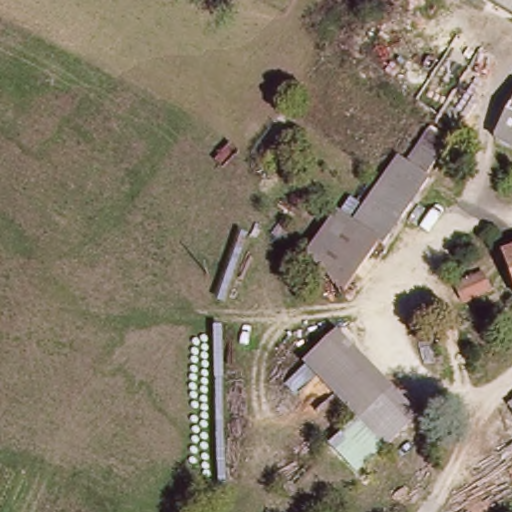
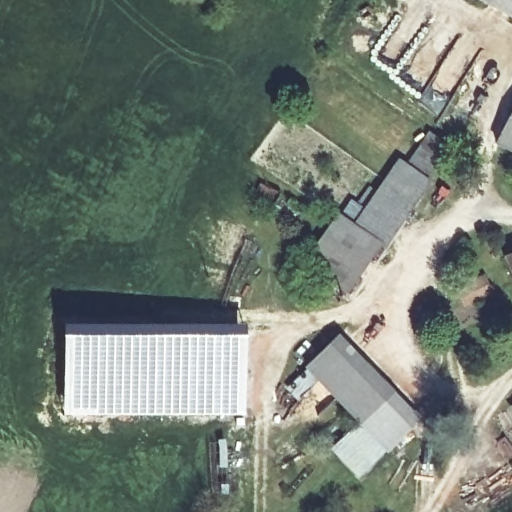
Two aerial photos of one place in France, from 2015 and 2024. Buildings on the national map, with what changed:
unchanged [(512,19),(481,0),(512,0),(512,19)]
unchanged [(512,116),(512,151),(499,142),(512,116)]
unchanged [(337,213),(355,224),(398,154),(408,160),(425,131),(445,143),(427,172),(434,177),(392,245),(380,238),(350,289),(307,266),(337,213)]
unchanged [(512,253),(512,262),(509,253),(512,253)]
unchanged [(496,294),(462,311),(449,286),(481,268),(496,294)]
new [(252,328),(250,417),(70,414),(72,324),(252,328)]
unchanged [(422,420),(361,475),(335,447),(366,422),(311,364),(341,336),(422,420)]

